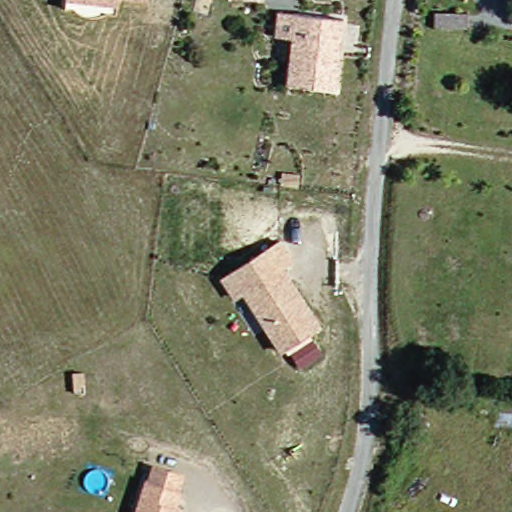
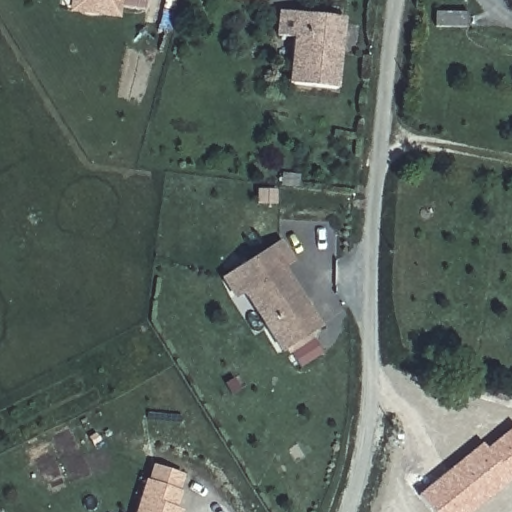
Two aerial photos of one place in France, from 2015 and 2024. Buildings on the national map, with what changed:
unchanged [(60,11),(61,1),(61,0),(142,0),(141,4),(112,0),(111,7),(110,17),(60,11)]
unchanged [(222,1),(223,0),(257,0),(257,4),(222,1)]
unchanged [(287,43),(271,41),(274,16),(337,23),(330,92),(282,88),(287,43)]
unchanged [(285,347),(247,289),(236,296),(224,277),(281,241),(293,260),(283,266),(321,324),(285,347)]
new [(486,447),(512,426),(512,481),(473,512),(430,512),(416,495),(482,443),(486,447)]
unchanged [(144,482),(148,468),(176,476),(172,490),(176,491),(171,508),(177,510),(176,512),(130,512),(140,480),(144,482)]

